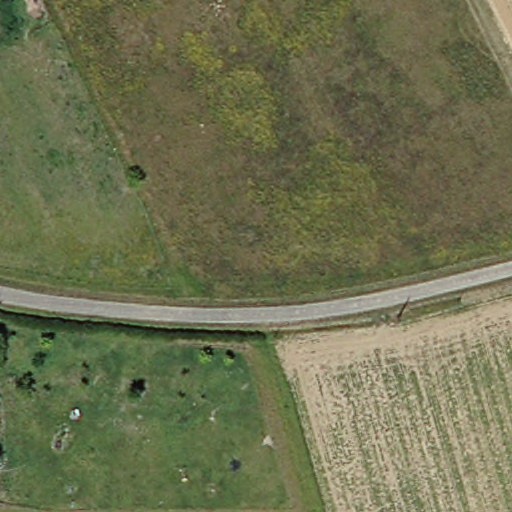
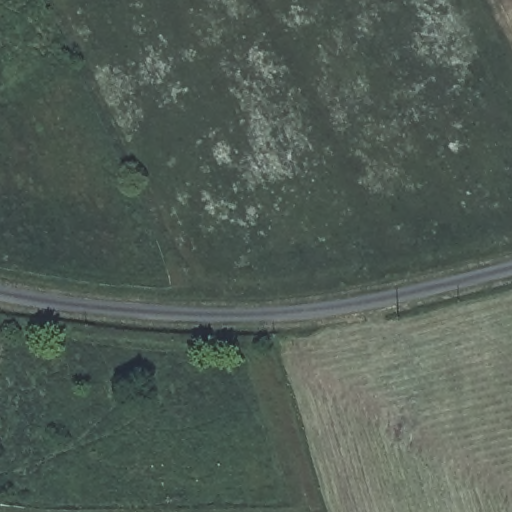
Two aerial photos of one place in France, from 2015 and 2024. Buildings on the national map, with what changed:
unchanged [(20,473),(19,496),(2,494),(5,473),(10,473),(20,473)]

